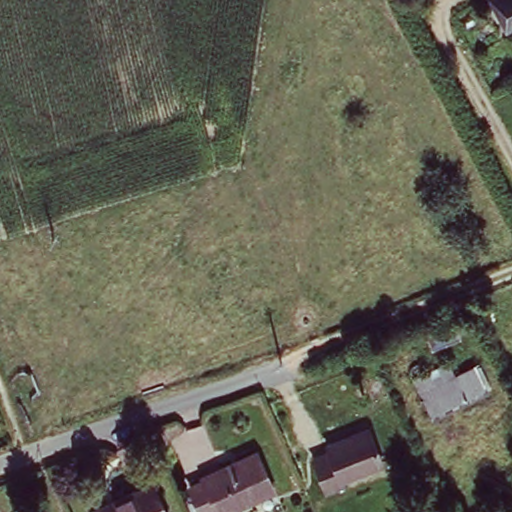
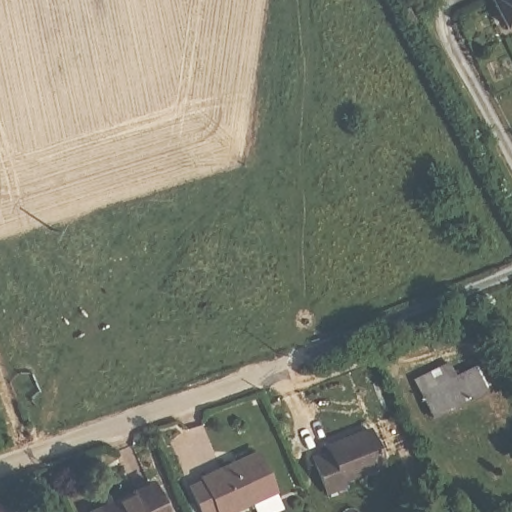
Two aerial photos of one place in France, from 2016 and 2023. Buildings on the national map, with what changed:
unchanged [(504,28),(490,0),(512,0),(512,25),(504,28)]
unchanged [(450,311),(457,326),(427,339),(420,324),(450,311)]
unchanged [(447,361),(454,374),(477,363),(488,386),(427,415),(411,378),(447,361)]
unchanged [(326,453),(323,448),(363,430),(378,464),(339,481),(342,489),(324,496),(309,460),(326,453)]
unchanged [(196,475),(250,450),(267,488),(217,512),(212,512),(212,510),(209,512),(194,512),(182,484),(197,478),(196,475)]
unchanged [(165,512),(90,512),(150,481),(165,512)]

